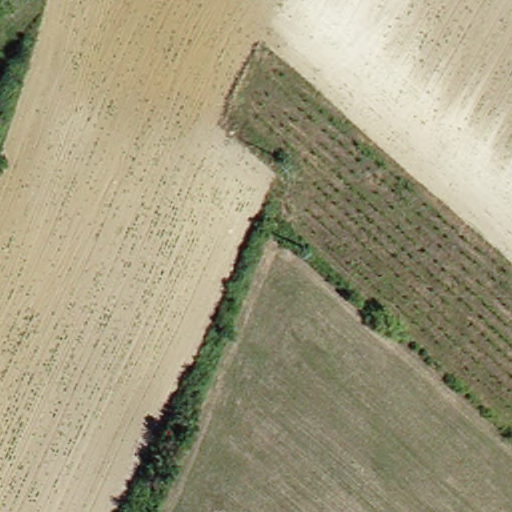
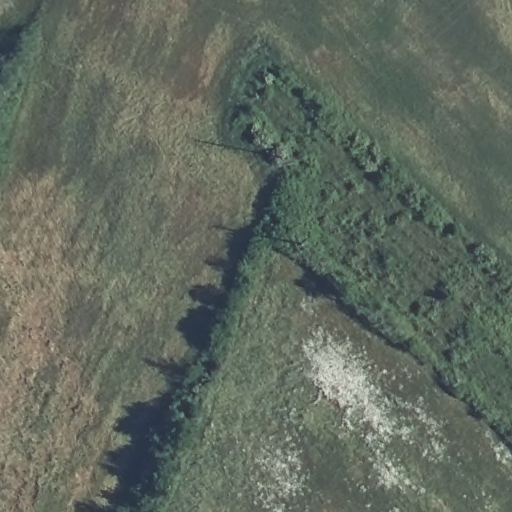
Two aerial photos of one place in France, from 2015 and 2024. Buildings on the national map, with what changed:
[]

